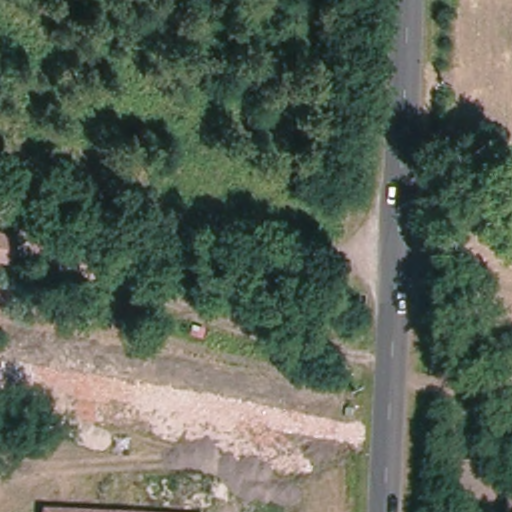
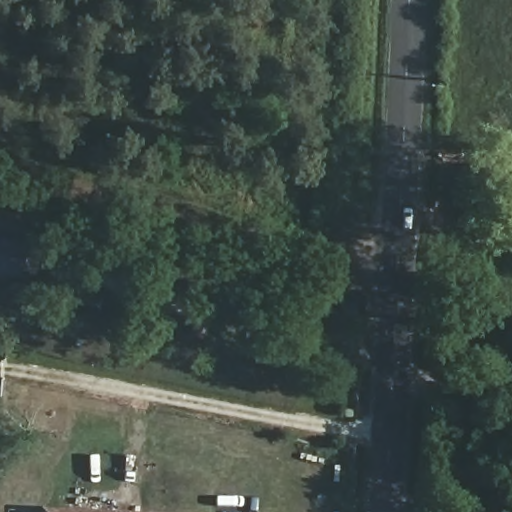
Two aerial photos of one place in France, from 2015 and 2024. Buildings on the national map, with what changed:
unchanged [(8,265),(0,263),(0,231),(15,235),(8,265)]

